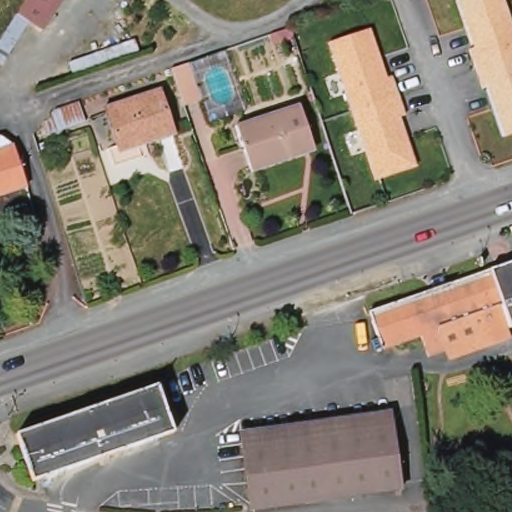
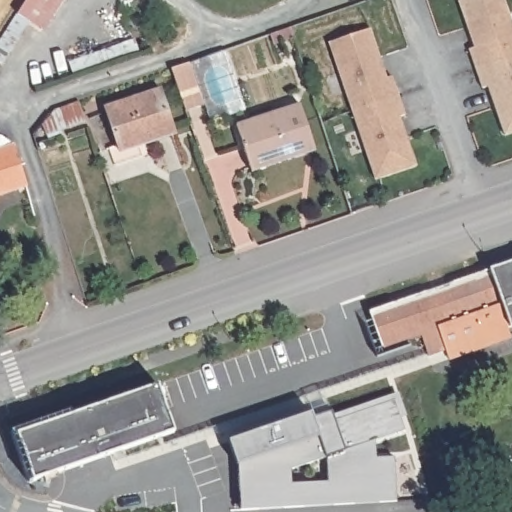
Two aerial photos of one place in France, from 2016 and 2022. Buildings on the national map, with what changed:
unchanged [(62,0),(46,25),(20,9),(26,0),(62,0)]
unchanged [(486,89),(480,69),(473,50),(478,48),(461,0),(507,0),(512,13),(512,135),(508,136),(492,87),(486,89)]
unchanged [(328,37),(370,23),(386,72),(392,70),(405,109),(399,111),(416,160),(375,174),(328,37)]
unchanged [(188,56),(199,91),(182,98),(170,63),(188,56)]
unchanged [(159,84),(174,128),(119,148),(104,102),(159,84)]
unchanged [(299,103),(313,147),(272,160),(273,164),(252,171),(237,123),(299,103)]
unchanged [(12,140),(26,181),(0,190),(0,144),(12,140)]
unchanged [(444,347),(426,352),(418,333),(375,346),(371,336),(377,334),(368,307),(431,285),(428,277),(442,272),(445,280),(512,256),(512,323),(506,325),(510,334),(447,355),(444,347)]
unchanged [(155,383),(171,430),(31,478),(15,431),(155,383)]
unchanged [(247,425),(396,404),(405,470),(255,490),(247,425)]

